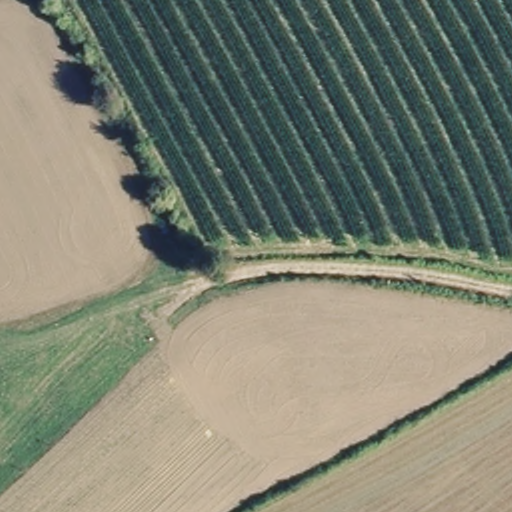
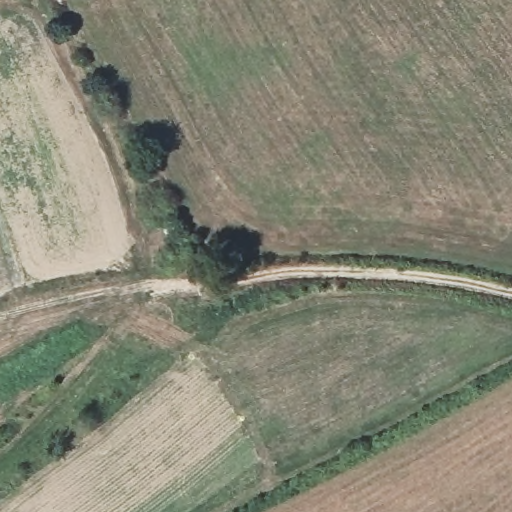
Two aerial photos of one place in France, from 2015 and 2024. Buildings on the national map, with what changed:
[]

